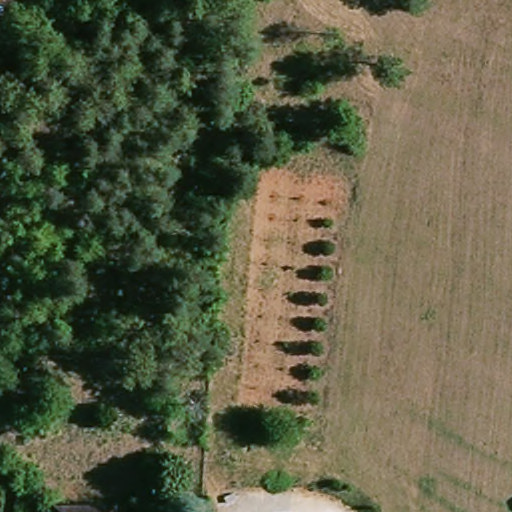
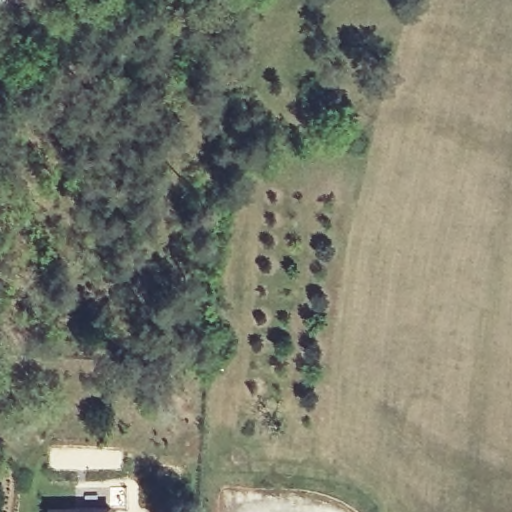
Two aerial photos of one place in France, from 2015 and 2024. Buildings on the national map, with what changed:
unchanged [(60,34),(66,35),(70,40),(71,54),(65,60),(55,61),(52,60),(46,54),(45,44),(47,41),(53,35),(60,34)]
unchanged [(56,506),(117,512),(55,512),(56,506)]

